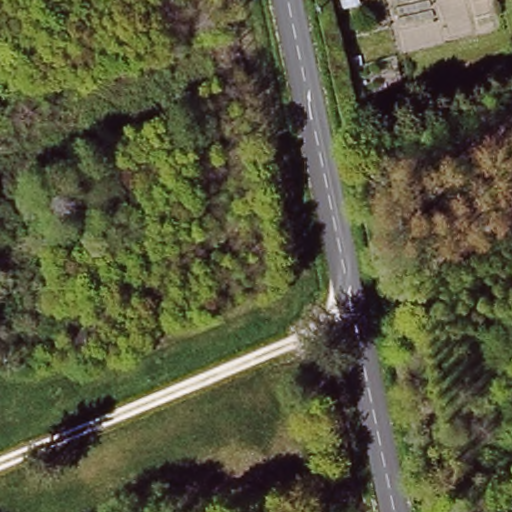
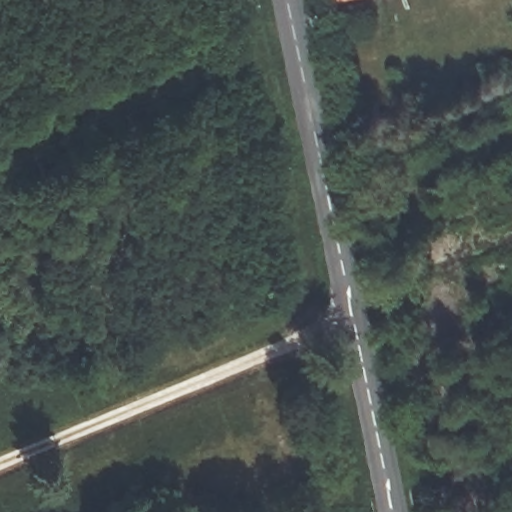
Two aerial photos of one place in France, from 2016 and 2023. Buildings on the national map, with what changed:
unchanged [(348,0),(330,4),(330,0),(348,0)]

